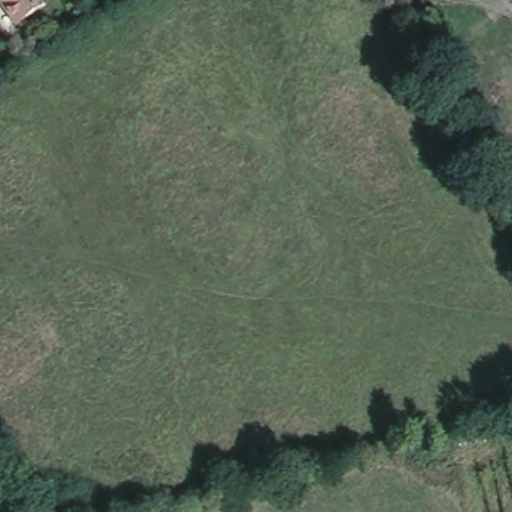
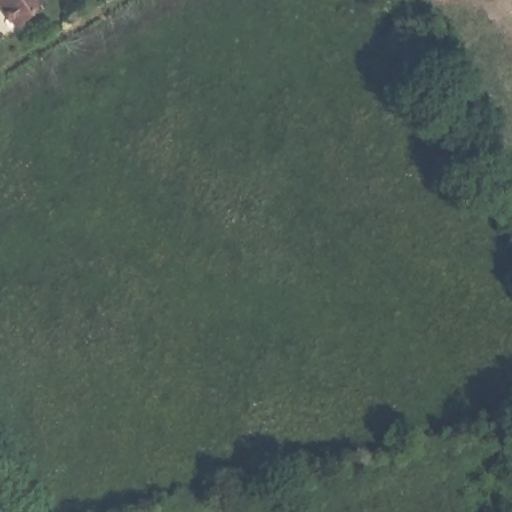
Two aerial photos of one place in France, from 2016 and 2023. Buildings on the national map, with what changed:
unchanged [(16,15),(8,0),(40,0),(16,15)]

